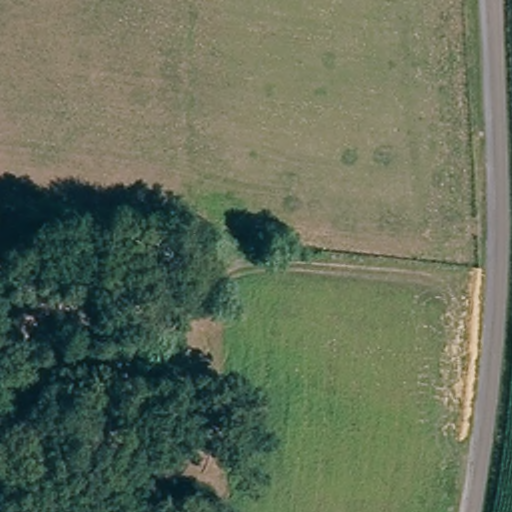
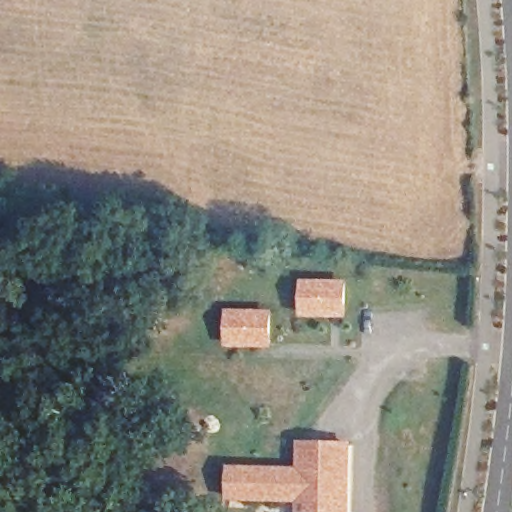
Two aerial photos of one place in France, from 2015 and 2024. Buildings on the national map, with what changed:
new [(349,280),(349,317),(302,317),(303,280),(349,280)]
new [(273,310),(272,347),(228,347),(228,310),(273,310)]
new [(297,441),(353,442),(351,512),(296,512),(296,502),(227,499),(228,465),(297,467),(297,441)]

